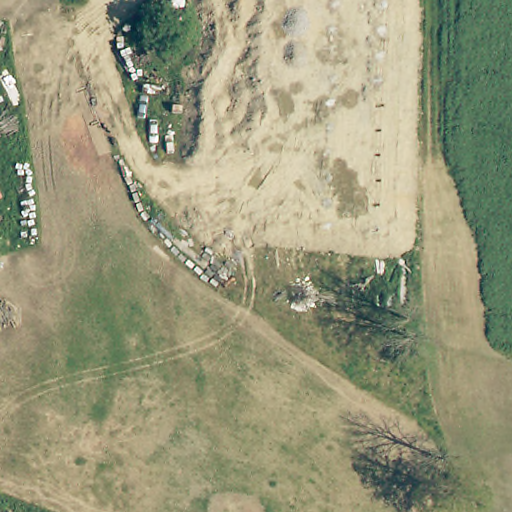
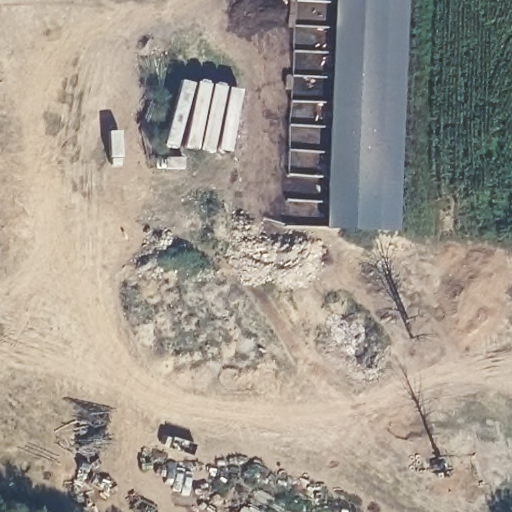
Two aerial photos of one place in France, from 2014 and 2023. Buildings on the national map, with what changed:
new [(395,233),(324,230),(335,0),(406,0),(395,233)]

